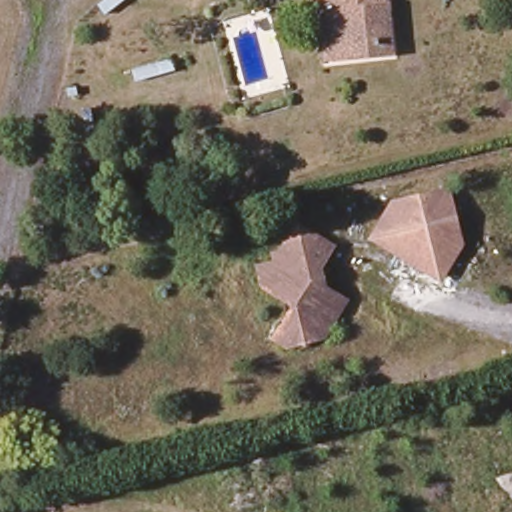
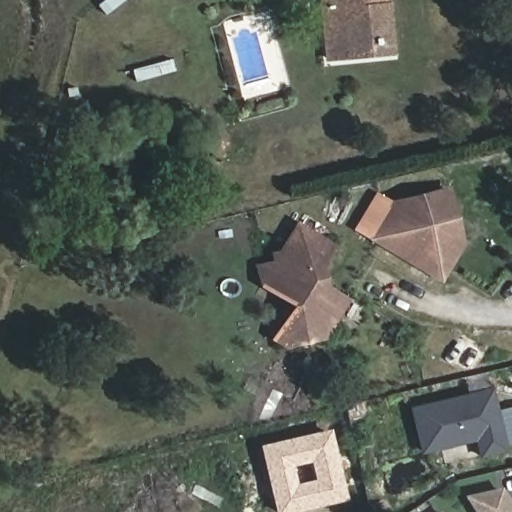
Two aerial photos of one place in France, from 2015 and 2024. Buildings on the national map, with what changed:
unchanged [(316,0),(389,0),(395,57),(322,64),(316,0)]
unchanged [(390,207),(446,192),(460,251),(441,279),(373,236),(390,207)]
unchanged [(270,257),(274,257),(295,224),(328,246),(315,262),(323,289),(345,302),(320,339),(295,342),(291,347),(282,340),(296,312),(253,284),(270,257)]
new [(505,450),(481,457),(484,468),(471,471),(467,455),(461,456),(458,444),(418,453),(410,409),(494,387),(505,450)]
new [(347,501),(297,512),(274,512),(258,444),(330,428),(347,501)]
new [(465,494),(500,486),(512,504),(512,512),(476,512),(465,494)]

